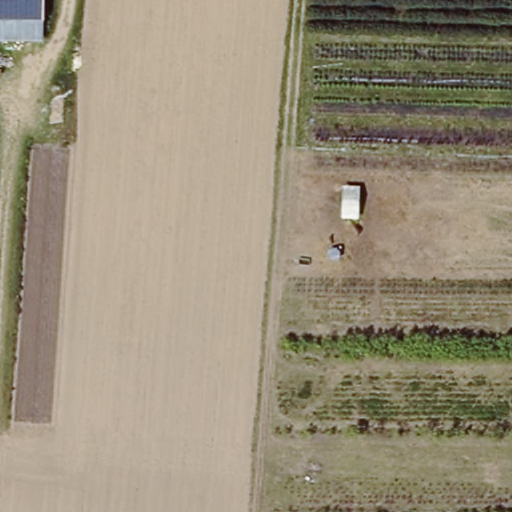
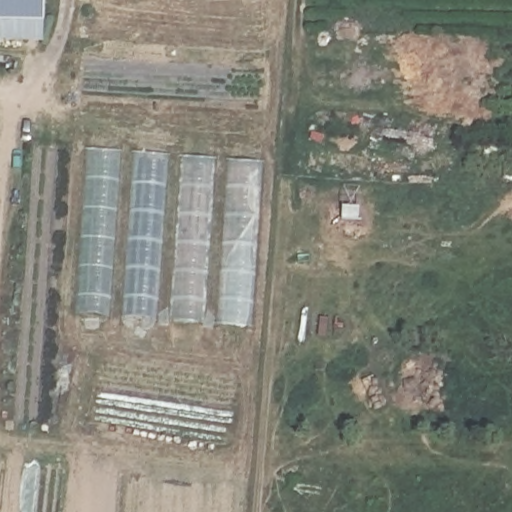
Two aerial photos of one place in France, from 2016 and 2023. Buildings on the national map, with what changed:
unchanged [(40,25),(0,24),(0,0),(39,0),(40,25)]
new [(0,24),(40,25),(39,0),(46,0),(46,24),(44,24),(42,44),(0,42),(0,24)]
new [(74,312),(85,149),(117,151),(106,315),(74,312)]
new [(121,317),(132,152),(167,155),(156,320),(121,317)]
new [(202,323),(168,320),(180,155),(214,158),(202,323)]
new [(249,327),(217,325),(227,160),(261,162),(249,327)]

